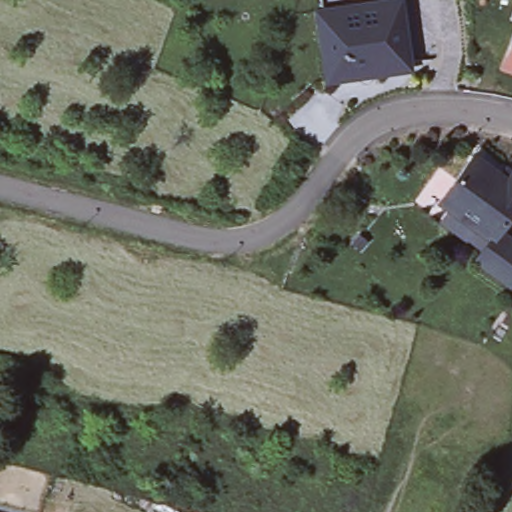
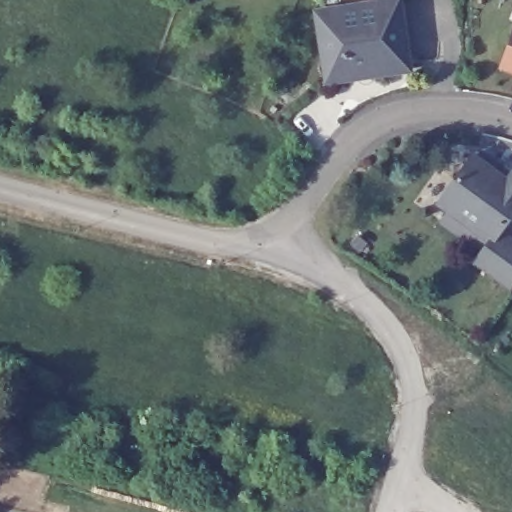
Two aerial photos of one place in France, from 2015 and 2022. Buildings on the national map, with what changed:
unchanged [(319,16),(325,15),(322,0),(363,0),(365,9),(403,3),(413,74),(329,86),(319,16)]
unchanged [(501,65),(512,36),(512,69),(501,65)]
unchanged [(499,230),(512,239),(512,281),(508,286),(475,261),(490,240),(438,202),(473,154),(507,179),(512,172),(512,212),(499,230)]

